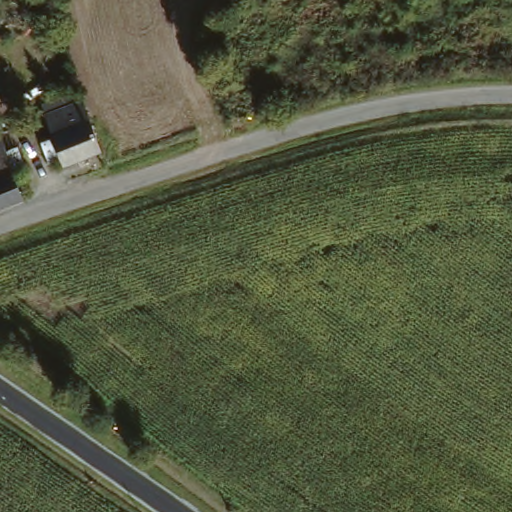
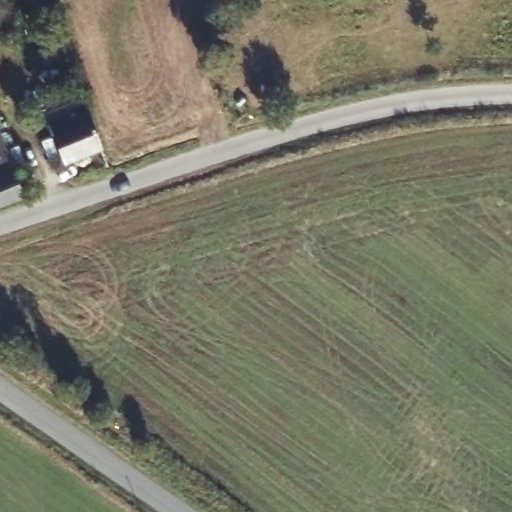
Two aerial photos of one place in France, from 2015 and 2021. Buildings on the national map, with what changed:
unchanged [(43,106),(81,95),(83,104),(98,155),(60,166),(50,131),(46,116),(43,106)]
unchanged [(24,202),(0,212),(0,138),(24,202)]

